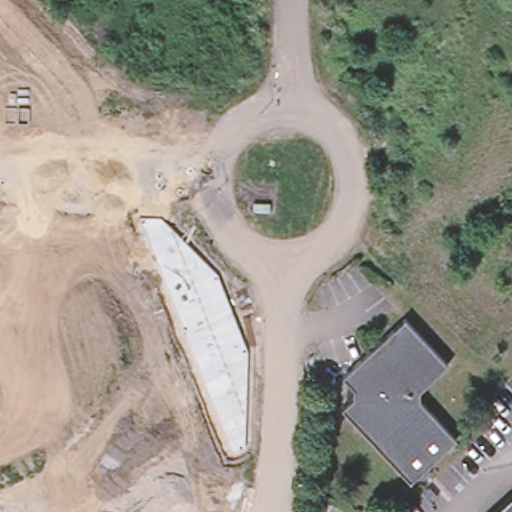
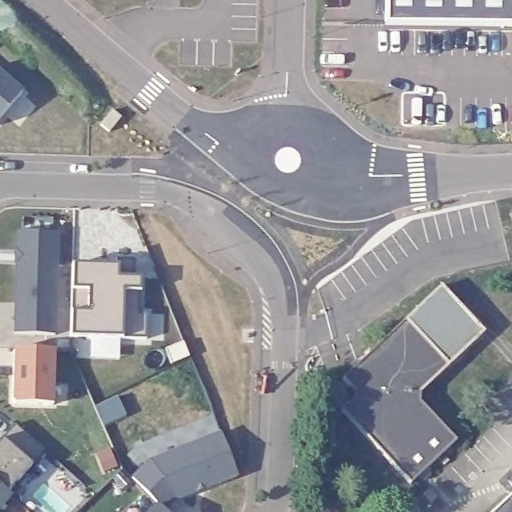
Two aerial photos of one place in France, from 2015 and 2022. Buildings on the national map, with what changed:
new [(386,0),(512,0),(512,26),(386,25),(386,0)]
new [(0,122),(0,80),(21,98),(0,122)]
unchanged [(255,205),(270,204),(271,213),(255,213),(255,205)]
new [(15,268),(14,268),(15,255),(16,236),(56,237),(53,339),(13,338),(15,268)]
new [(105,265),(105,278),(116,278),(116,258),(133,258),(132,278),(139,278),(138,314),(145,314),(145,337),(70,336),(72,264),(105,265)]
new [(407,320),(442,287),(487,332),(450,366),(407,320)]
unchanged [(450,366),(422,392),(421,403),(457,441),(429,467),(432,474),(428,479),(425,481),(416,479),(411,484),(342,411),(350,404),(347,399),(348,390),(350,387),(343,379),(407,320),(450,366)]
new [(12,353),(53,354),(51,409),(13,407),(10,405),(12,353)]
unchanged [(43,454),(5,497),(0,492),(0,443),(13,428),(43,454)]
new [(152,458),(222,430),(240,475),(181,498),(175,498),(162,506),(133,475),(152,458)]
unchanged [(9,500),(0,511),(0,492),(5,497),(9,500)]
unchanged [(494,512),(512,495),(512,512),(494,512)]
new [(164,512),(151,512),(158,505),(164,512)]

